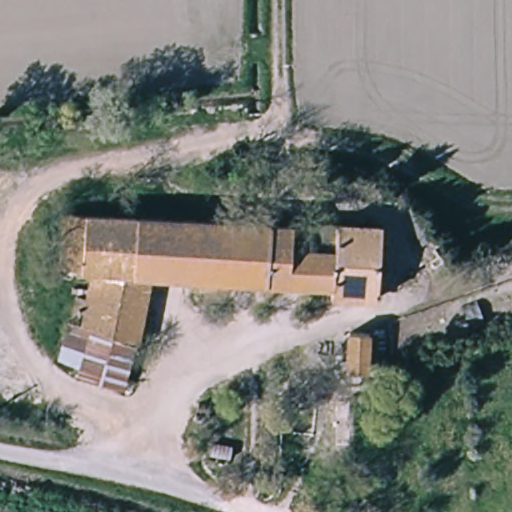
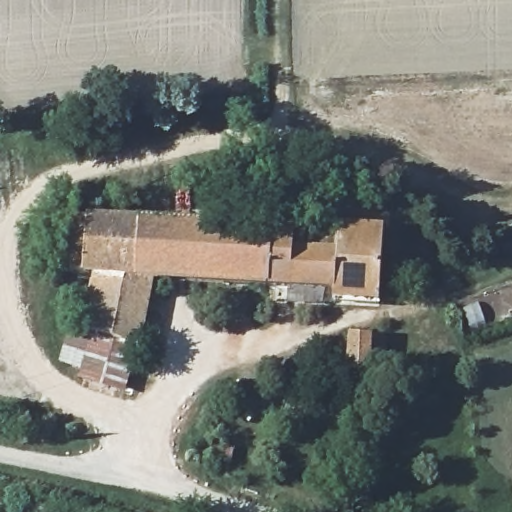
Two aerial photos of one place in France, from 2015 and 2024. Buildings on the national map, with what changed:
unchanged [(71,217),(102,219),(252,226),(260,227),(342,231),(340,291),(158,282),(103,279),(68,277),(71,217)]
unchanged [(382,234),(379,298),(378,304),(340,302),(340,291),(342,231),(382,234)]
unchanged [(158,282),(143,345),(105,336),(92,334),(103,279),(158,282)]
unchanged [(143,345),(133,382),(95,370),(105,336),(143,345)]
unchanged [(341,375),(346,337),(362,340),(379,341),(377,360),(364,360),(362,376),(341,375)]

